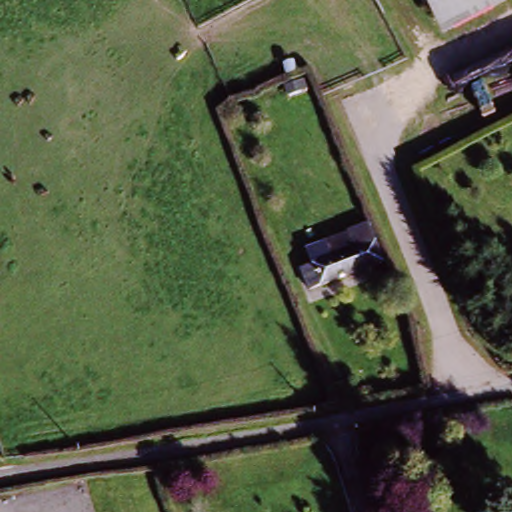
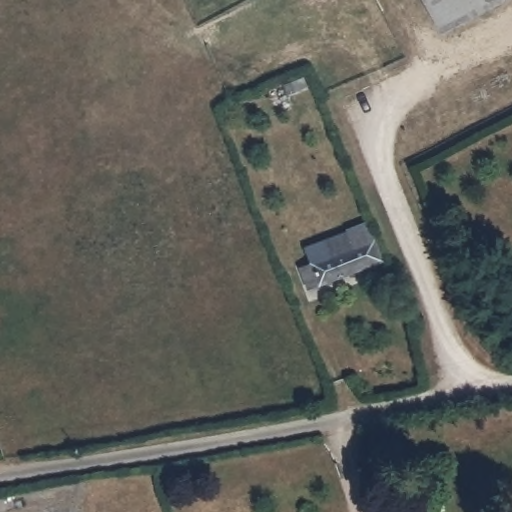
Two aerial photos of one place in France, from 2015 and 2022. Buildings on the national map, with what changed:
unchanged [(433,0),(512,0),(512,2),(450,34),(433,0)]
unchanged [(310,264),(367,243),(375,265),(317,285),(310,264)]

